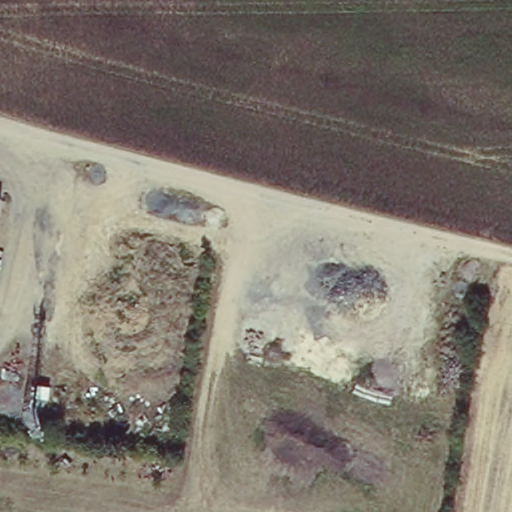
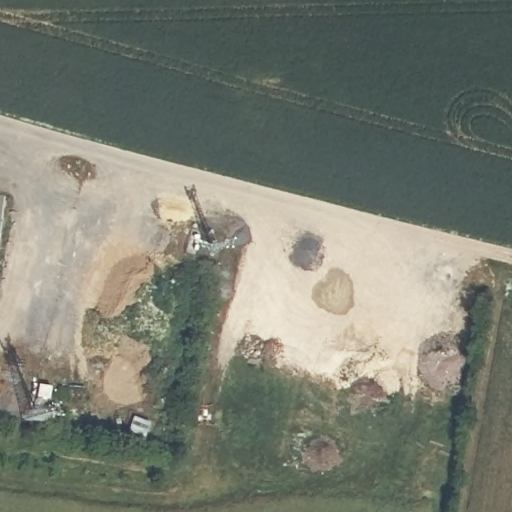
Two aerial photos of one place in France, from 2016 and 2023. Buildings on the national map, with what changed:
unchanged [(45,379),(57,381),(55,393),(43,391),(45,379)]

